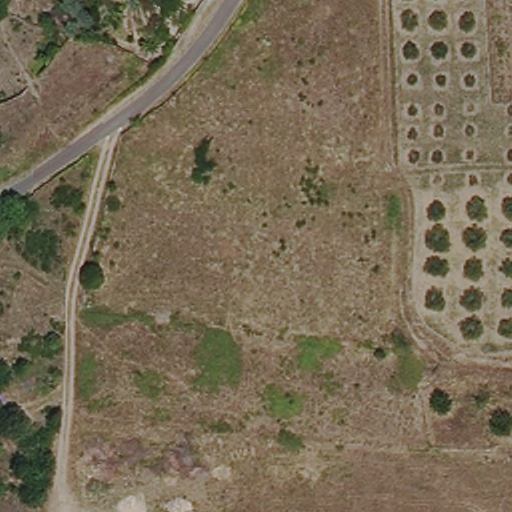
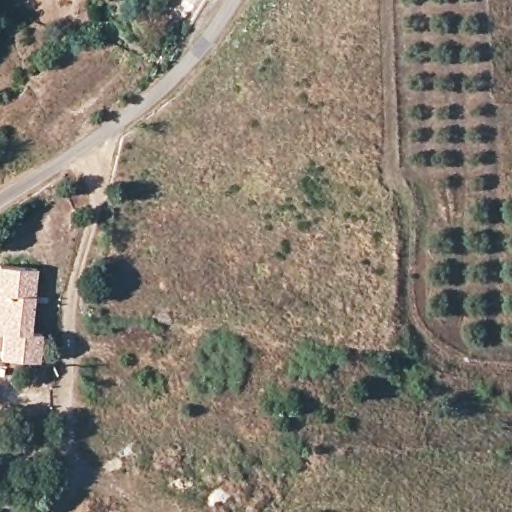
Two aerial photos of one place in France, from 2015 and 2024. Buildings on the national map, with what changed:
new [(38,267),(31,332),(42,332),(39,358),(0,354),(0,345),(2,328),(0,328),(0,264),(38,267)]

